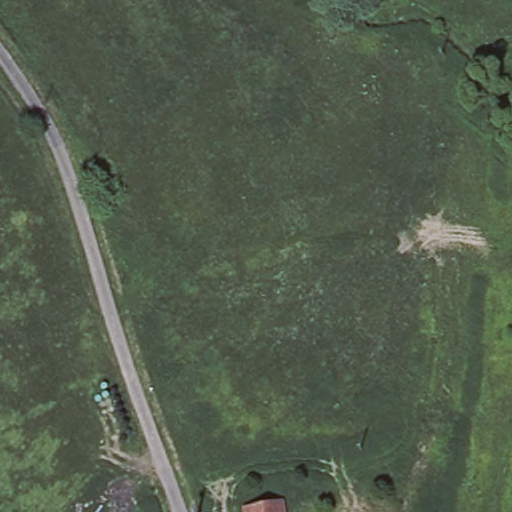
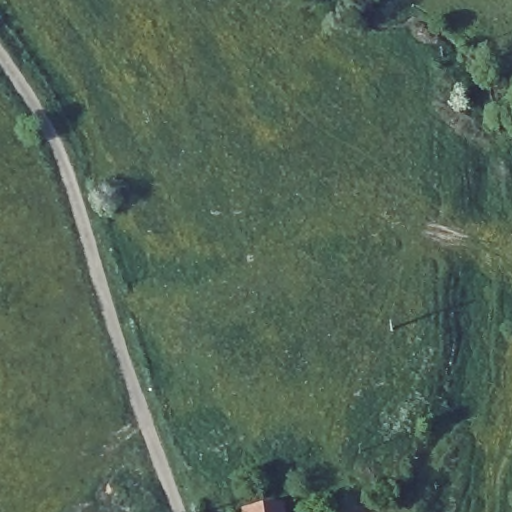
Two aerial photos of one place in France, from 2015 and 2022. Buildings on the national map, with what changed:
unchanged [(283,504),(285,512),(245,512),(245,509),(283,504)]

